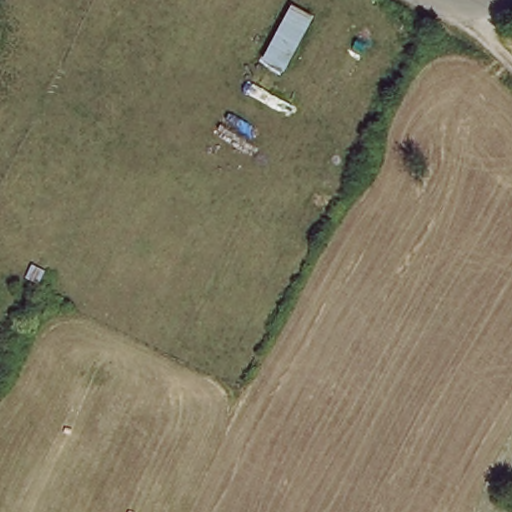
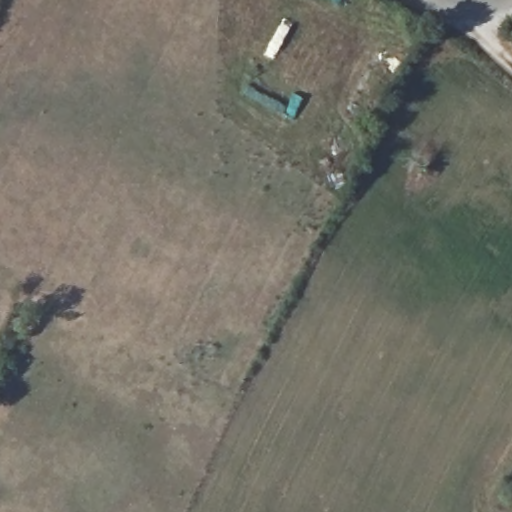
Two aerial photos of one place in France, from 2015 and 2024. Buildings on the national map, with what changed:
demolished [(271,88),(251,75),(287,3),(309,17),(271,88)]

